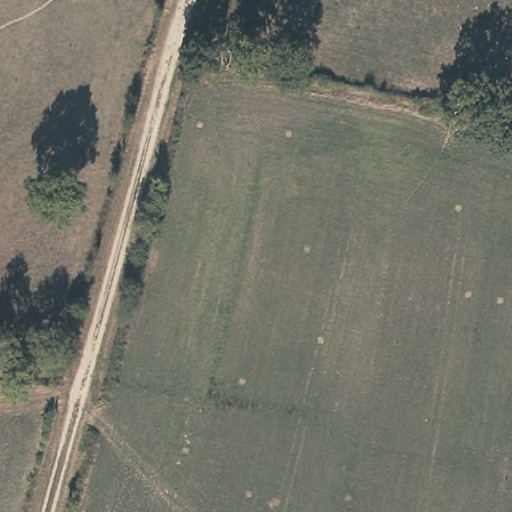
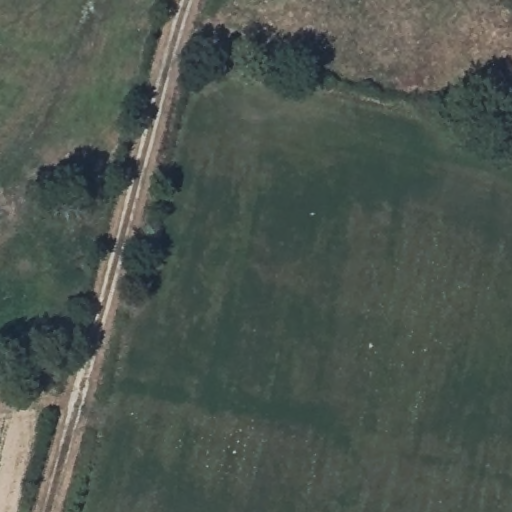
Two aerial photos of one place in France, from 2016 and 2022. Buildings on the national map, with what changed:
[]

